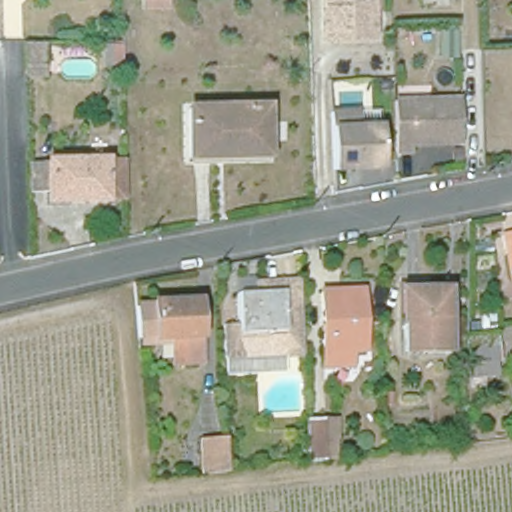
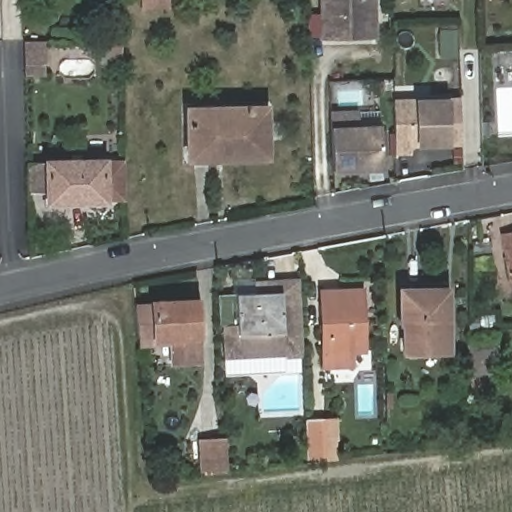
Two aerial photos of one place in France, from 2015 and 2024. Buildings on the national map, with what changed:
unchanged [(170,0),(170,15),(139,16),(138,0),(170,0)]
unchanged [(373,0),(374,40),(324,40),(323,0),(373,0)]
unchanged [(450,27),(450,36),(437,36),(437,27),(450,27)]
unchanged [(119,45),(119,64),(110,64),(105,65),(105,45),(119,45)]
unchanged [(44,47),(44,70),(44,80),(24,81),(24,70),(24,47),(44,47)]
unchanged [(459,96),(461,144),(409,145),(409,153),(394,154),(393,125),(392,99),(459,96)]
unchanged [(188,106),(265,106),(266,156),(189,157),(188,106)]
unchanged [(381,126),(382,169),(333,170),(332,128),(381,126)]
unchanged [(45,159),(104,159),(104,161),(124,161),(124,198),(104,199),(104,201),(46,201),(45,159)]
unchanged [(499,235),(512,232),(512,280),(509,280),(499,235)]
unchanged [(255,305),(254,290),(278,288),(299,287),(301,365),(282,366),(239,367),(236,305),(255,305)]
unchanged [(321,289),(360,288),(361,352),(351,353),(351,366),(323,367),(321,289)]
unchanged [(401,290),(447,290),(448,350),(402,351),(401,290)]
unchanged [(136,338),(134,304),(195,300),(199,360),(172,362),(170,343),(138,346),(136,338)]
unchanged [(494,334),(498,360),(493,360),(494,373),(466,377),(466,336),(494,334)]
unchanged [(307,458),(305,419),(334,418),(335,459),(307,458)]
unchanged [(225,470),(202,472),(200,441),(224,440),(225,470)]

